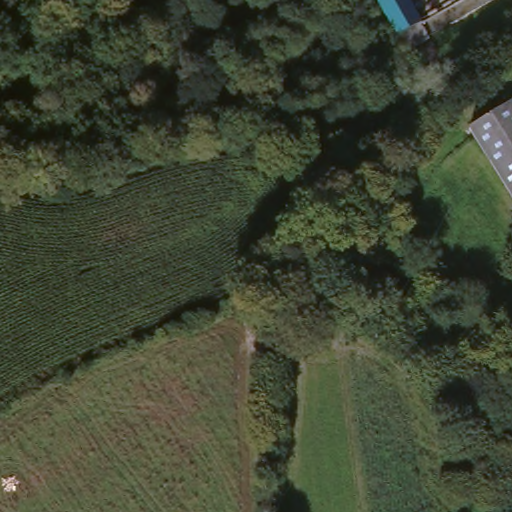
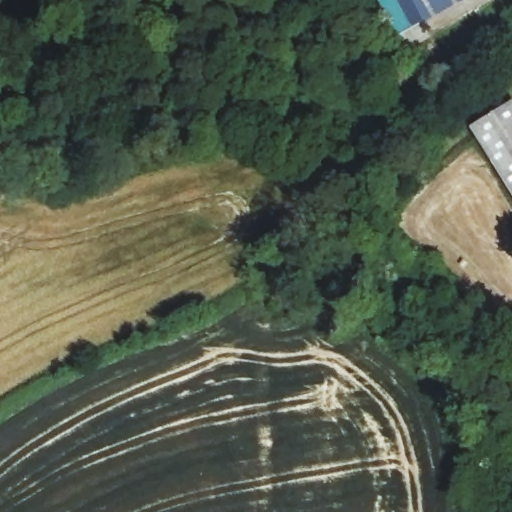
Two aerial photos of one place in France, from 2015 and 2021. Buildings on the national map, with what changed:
unchanged [(394,34),(375,0),(459,0),(394,34)]
unchanged [(512,105),(512,189),(507,192),(496,174),(474,129),(512,105)]
unchanged [(512,204),(507,192),(512,189),(512,204)]

